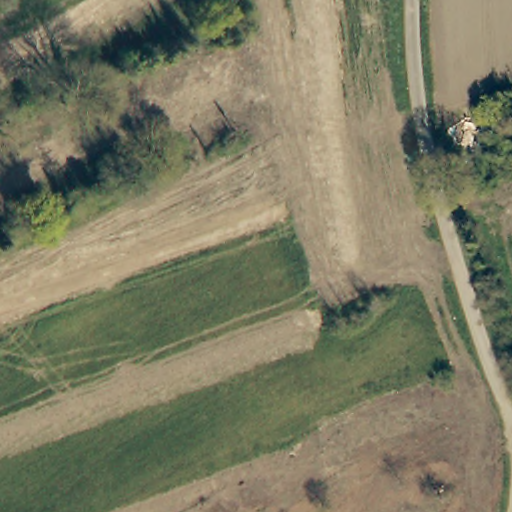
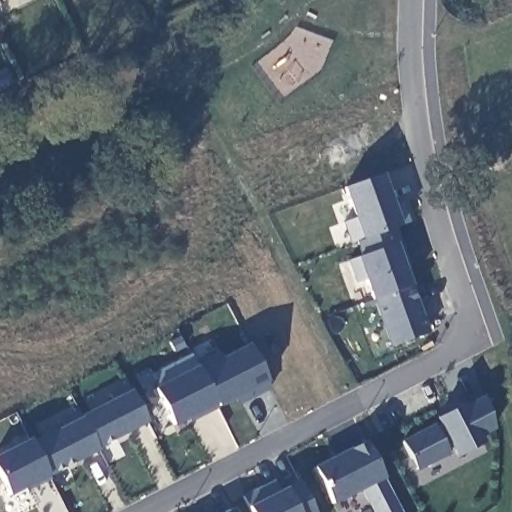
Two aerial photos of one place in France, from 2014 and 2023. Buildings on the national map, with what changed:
new [(12,82),(0,88),(0,71),(5,69),(12,82)]
demolished [(495,137),(479,117),(512,95),(512,126),(495,137)]
new [(355,216),(344,185),(381,172),(392,205),(402,200),(409,220),(392,226),(356,240),(351,242),(343,221),(355,216)]
new [(389,345),(357,256),(361,254),(356,240),(392,226),(429,331),(389,345)]
new [(239,404),(236,397),(219,406),(216,400),(202,369),(249,343),(267,381),(270,388),(239,404)]
new [(216,400),(174,421),(152,373),(193,352),(202,369),(216,400)]
new [(0,475),(0,455),(130,389),(146,421),(11,495),(0,475)]
new [(439,424),(436,417),(481,396),(495,429),(482,435),(486,443),(457,457),(454,451),(417,470),(401,439),(439,424)]
new [(266,482),(271,492),(300,478),(317,512),(249,512),(241,495),(266,482)]

